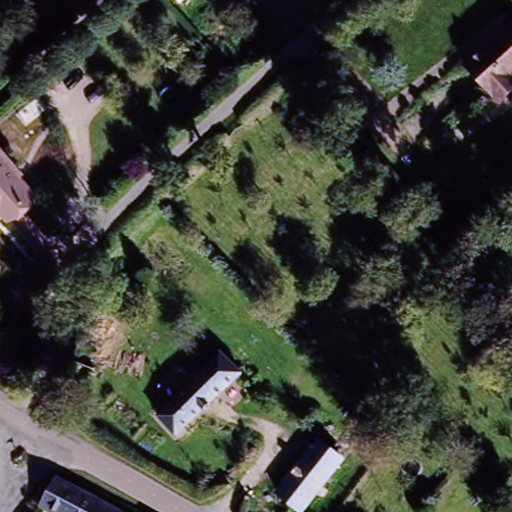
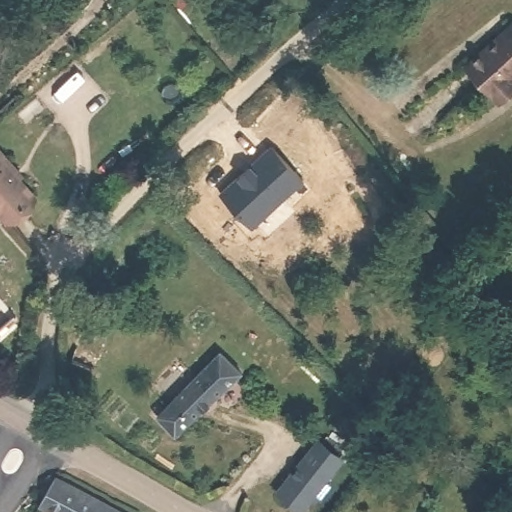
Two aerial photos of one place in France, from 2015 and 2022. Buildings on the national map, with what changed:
unchanged [(497,100),(495,98),(465,64),(512,20),(512,73),(510,74),(512,76),(512,87),(497,100)]
unchanged [(9,225),(0,215),(0,148),(25,179),(20,182),(36,200),(9,225)]
new [(220,197),(270,150),(303,186),(252,228),(220,197)]
unchanged [(79,395),(57,384),(77,337),(100,348),(79,395)]
unchanged [(219,356),(237,377),(175,436),(155,415),(219,356)]
unchanged [(315,449),(337,469),(301,512),(288,512),(273,499),(315,449)]
unchanged [(40,507),(55,479),(119,512),(49,512),(40,507)]

